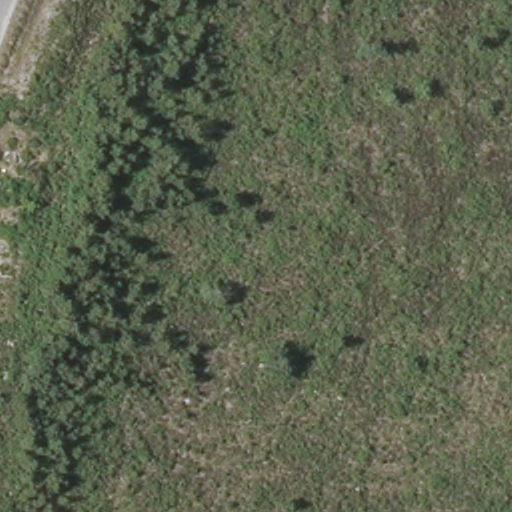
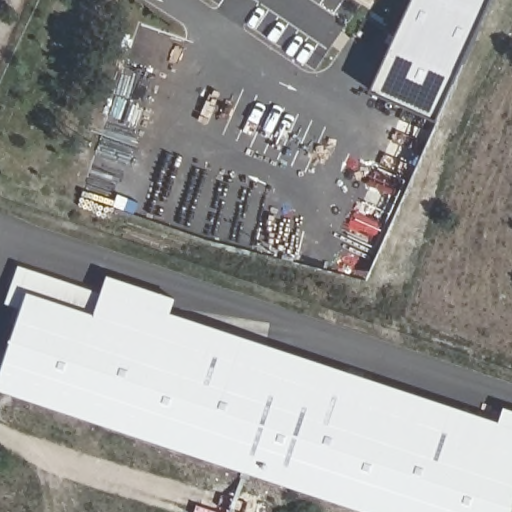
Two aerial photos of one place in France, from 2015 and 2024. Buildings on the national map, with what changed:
new [(413,0),(489,0),(437,120),(372,90),(413,0)]
new [(20,266),(103,292),(96,314),(29,291),(23,310),(7,304),(20,266)]
new [(23,310),(29,291),(96,314),(103,292),(108,276),(175,298),(171,312),(500,422),(505,407),(512,409),(512,512),(370,512),(0,389),(0,379),(23,310)]

